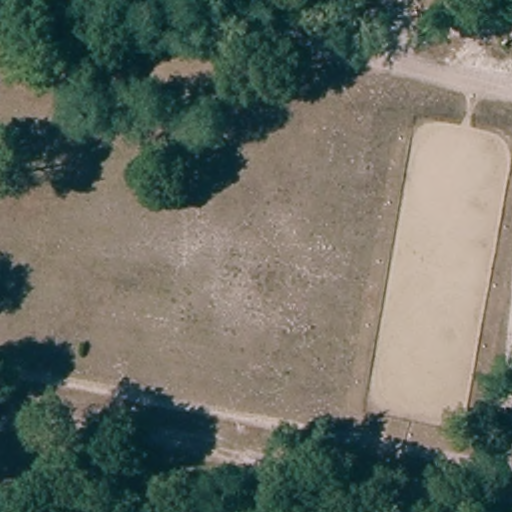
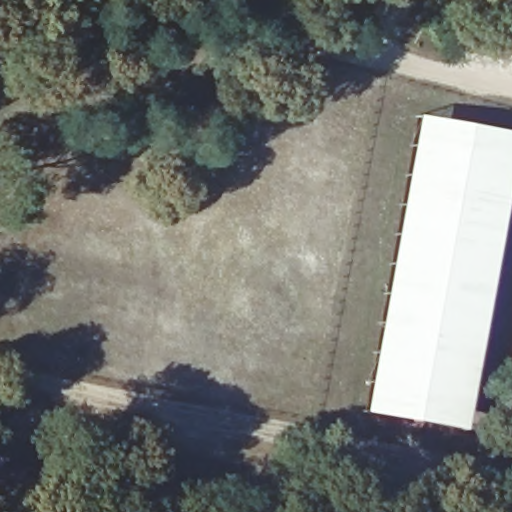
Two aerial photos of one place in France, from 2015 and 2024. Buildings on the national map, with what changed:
new [(512,134),(512,162),(463,431),(362,412),(416,116),(512,134)]

